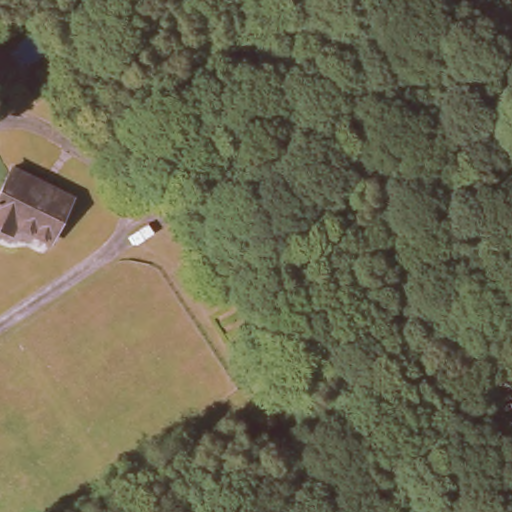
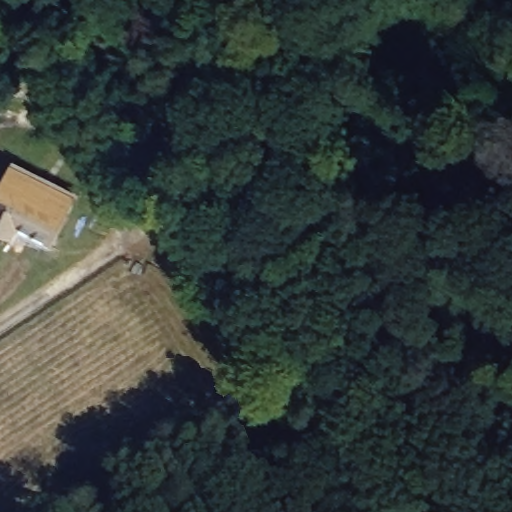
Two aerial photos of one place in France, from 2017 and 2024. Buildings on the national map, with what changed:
unchanged [(2,165),(69,197),(53,242),(13,223),(7,237),(0,235),(0,170),(2,165)]

